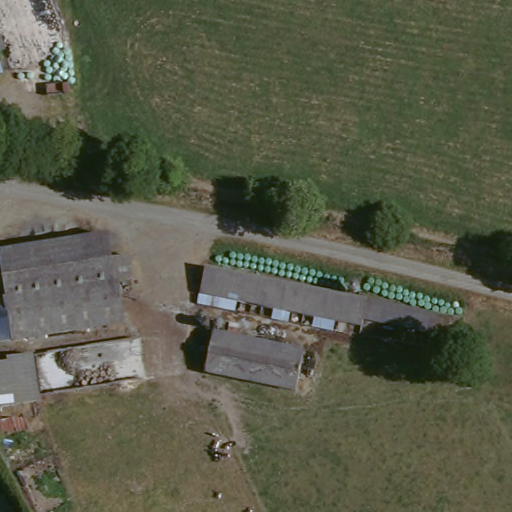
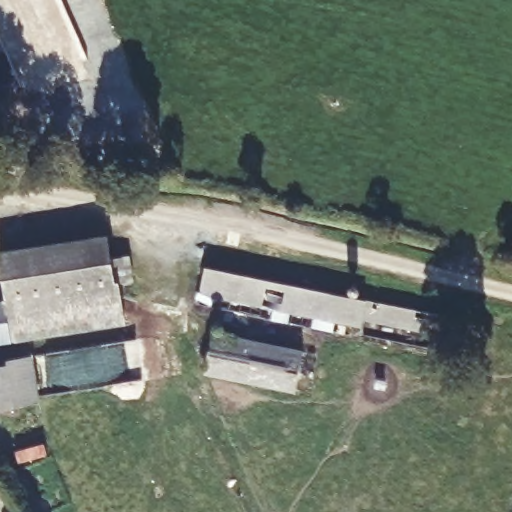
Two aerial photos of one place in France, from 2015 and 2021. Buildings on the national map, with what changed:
unchanged [(2,55),(0,55),(0,49),(2,55)]
unchanged [(0,272),(0,253),(104,239),(111,286),(5,302),(0,272)]
unchanged [(208,267),(465,319),(461,339),(365,320),(363,328),(202,296),(208,267)]
unchanged [(111,286),(115,285),(121,325),(11,343),(5,302),(111,286)]
unchanged [(5,302),(11,343),(0,345),(0,302),(5,302)]
unchanged [(211,337),(303,356),(295,391),(294,397),(202,378),(211,337)]
unchanged [(42,418),(0,424),(0,383),(11,381),(12,373),(34,372),(42,418)]

